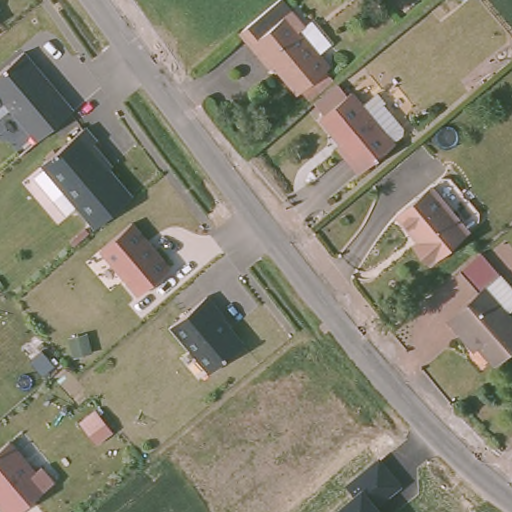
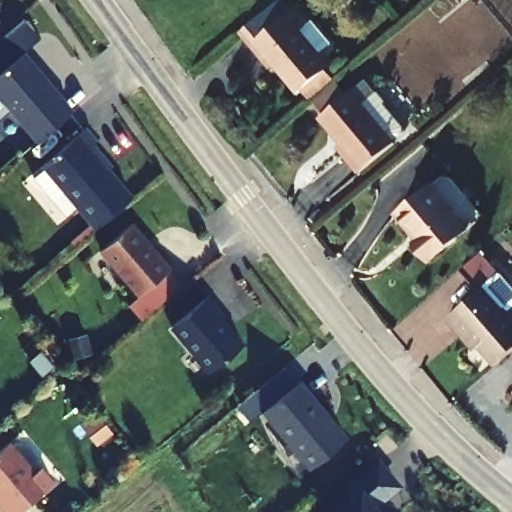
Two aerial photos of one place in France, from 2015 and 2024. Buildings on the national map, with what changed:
unchanged [(277,5),(331,63),(297,90),(262,46),(252,54),(239,38),(277,5)]
unchanged [(38,134),(37,134),(0,89),(0,65),(24,45),(74,104),(52,122),(38,134)]
unchanged [(350,86),(394,141),(354,175),(336,155),(345,149),(316,114),(350,86)]
unchanged [(97,221),(46,161),(46,155),(86,121),(97,135),(90,141),(132,191),(97,221)]
unchanged [(431,178),(470,223),(430,254),(414,236),(420,231),(397,207),(431,178)]
unchanged [(102,243),(132,217),(171,262),(140,288),(102,243)]
unchanged [(493,370),(473,343),(462,351),(442,324),(487,288),(489,291),(502,280),(512,291),(512,313),(509,316),(512,319),(512,353),(493,370)]
unchanged [(172,321),(208,290),(225,310),(222,313),(229,322),(230,321),(245,338),(212,366),(172,321)]
new [(310,468),(262,412),(301,379),(347,438),(310,468)]
unchanged [(0,449),(10,441),(37,470),(42,466),(55,482),(17,512),(4,512),(0,507),(0,449)]
unchanged [(402,483),(377,503),(385,512),(333,512),(355,495),(344,484),(379,456),(402,483)]

